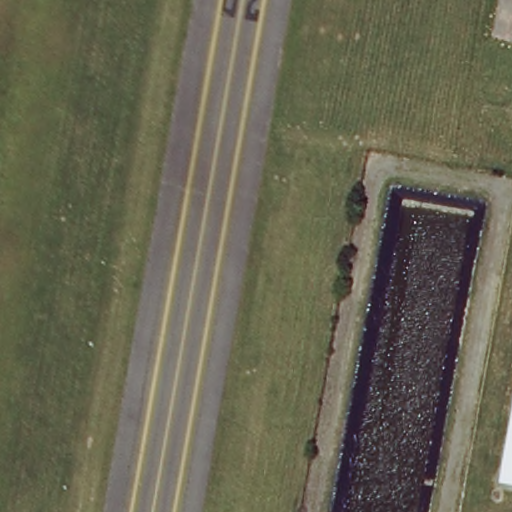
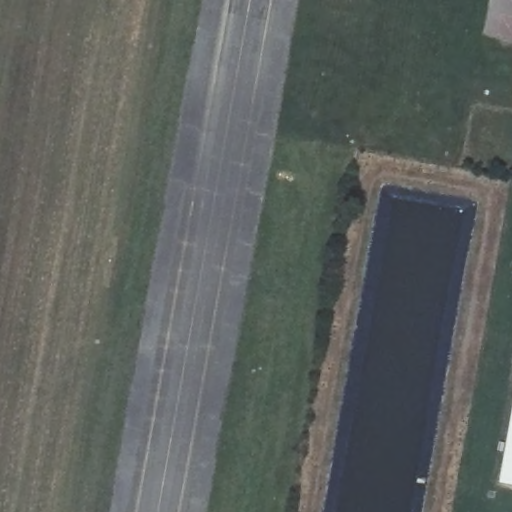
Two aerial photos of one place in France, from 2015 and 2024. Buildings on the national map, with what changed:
unchanged [(502,486),(512,432),(512,487),(502,486)]

